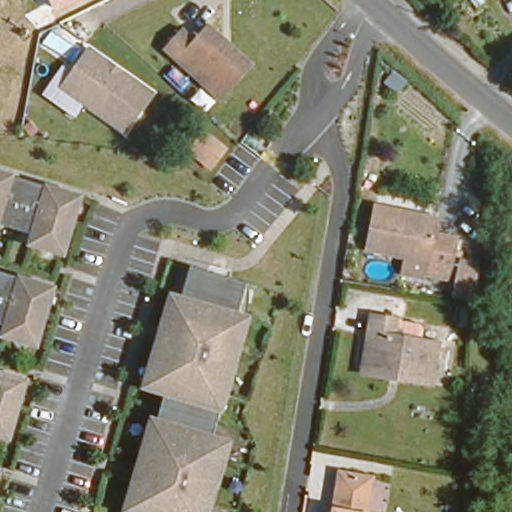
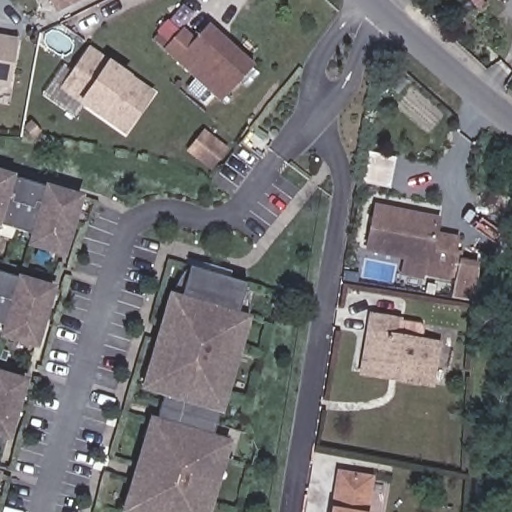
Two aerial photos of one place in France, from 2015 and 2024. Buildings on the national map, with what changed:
unchanged [(54,11),(49,0),(78,0),(54,11)]
unchanged [(176,25),(189,37),(203,22),(250,68),(217,102),(157,45),(176,25)]
new [(19,44),(10,91),(0,90),(0,39),(19,44)]
unchanged [(112,66),(110,70),(117,75),(120,72),(136,84),(152,96),(148,101),(124,132),(64,87),(91,50),(112,66)]
unchanged [(58,255),(25,245),(27,236),(0,228),(0,176),(75,198),(58,255)]
unchanged [(351,193),(380,199),(379,203),(407,208),(405,217),(434,222),(425,265),(396,258),(399,247),(345,235),(351,193)]
unchanged [(450,288),(431,287),(433,252),(452,254),(450,288)]
unchanged [(230,315),(234,316),(229,332),(235,335),(230,350),(226,348),(221,362),(226,363),(217,395),(212,393),(207,408),(212,410),(203,438),(215,441),(210,455),(215,457),(209,476),(206,488),(201,487),(197,500),(201,502),(199,512),(122,512),(126,497),(120,495),(133,453),(138,438),(142,440),(157,393),(140,387),(146,369),(141,367),(159,311),(165,312),(170,296),(174,297),(184,266),(240,283),(230,315)]
unchanged [(36,342),(3,332),(5,322),(0,321),(0,269),(53,285),(36,342)]
unchanged [(357,360),(364,313),(390,317),(388,332),(431,340),(424,380),(387,375),(356,370),(357,360)]
unchanged [(4,440),(0,438),(0,376),(21,382),(4,440)]
unchanged [(364,479),(357,512),(327,512),(333,473),(364,479)]

